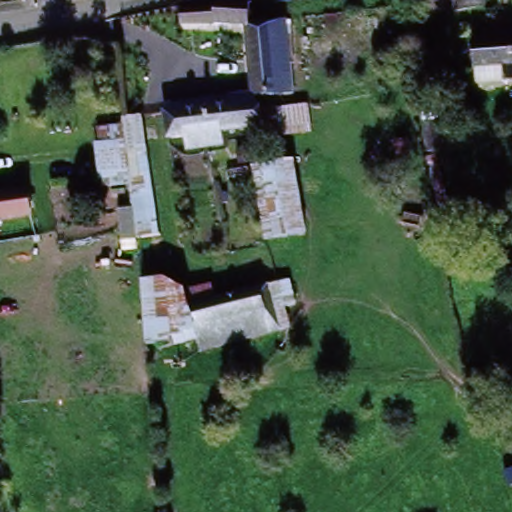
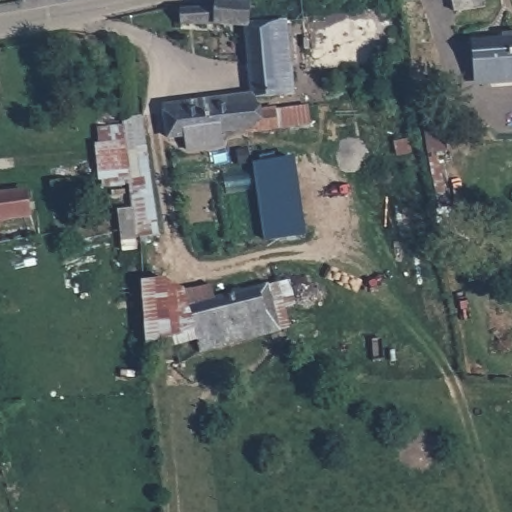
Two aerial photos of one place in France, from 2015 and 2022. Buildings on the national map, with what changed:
unchanged [(449,0),(481,0),(482,7),(451,13),(449,0)]
unchanged [(250,42),(249,32),(217,31),(184,30),(185,16),(218,16),(217,7),(225,6),(251,11),(251,32),(275,31),(287,30),(291,80),(278,80),(280,101),(253,102),(250,42)]
unchanged [(475,40),(512,37),(512,76),(479,79),(475,40)]
unchanged [(395,76),(395,83),(390,84),(389,77),(395,76)]
unchanged [(197,150),(195,140),(168,142),(166,118),(253,110),(254,122),(275,120),(277,137),(256,139),(247,140),(246,135),(215,138),(216,149),(197,150)]
unchanged [(443,150),(421,151),(420,138),(424,138),(422,112),(435,111),(436,137),(442,136),(443,150)]
unchanged [(124,139),(123,121),(143,120),(163,236),(120,240),(115,212),(130,210),(126,184),(97,187),(93,144),(124,139)]
unchanged [(406,151),(395,155),(392,143),(402,140),(406,151)]
unchanged [(295,160),(308,234),(265,241),(253,166),(295,160)]
unchanged [(27,185),(31,210),(0,214),(0,190),(27,185)]
unchanged [(167,280),(186,292),(209,285),(213,302),(291,283),(300,304),(288,307),(292,327),(199,357),(190,339),(167,346),(142,327),(140,285),(167,280)]

